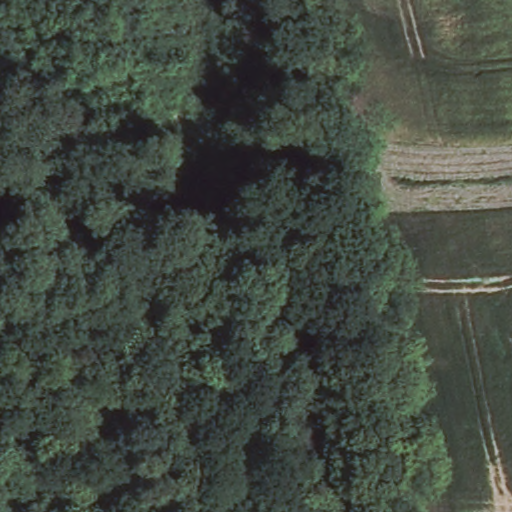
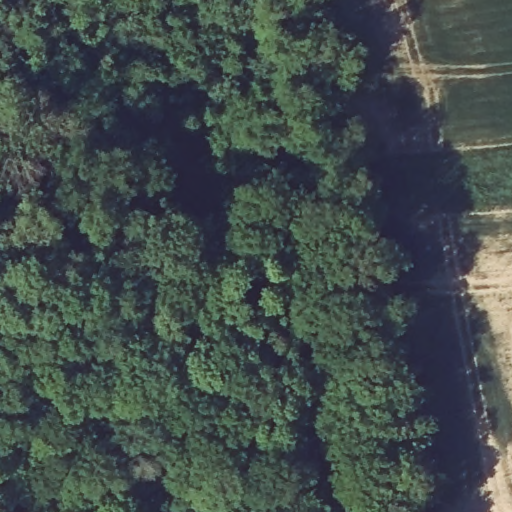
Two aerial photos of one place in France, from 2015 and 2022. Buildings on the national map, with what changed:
unchanged [(155,151),(85,161),(81,123),(150,116),(155,151)]
unchanged [(0,169),(0,129),(50,123),(55,162),(0,169)]

